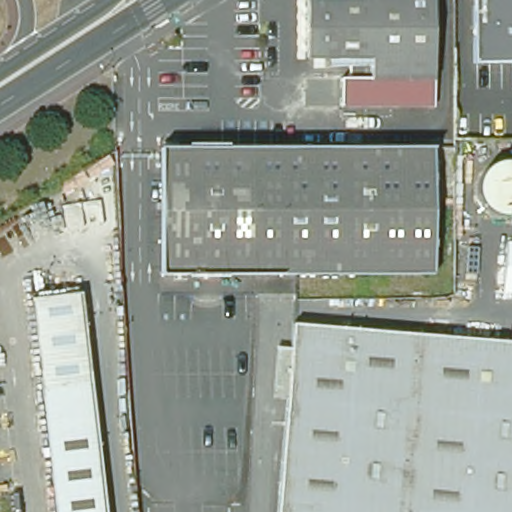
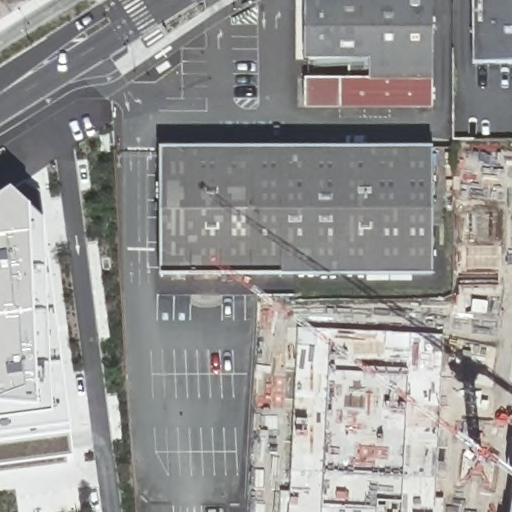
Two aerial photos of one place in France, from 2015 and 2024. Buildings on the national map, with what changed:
unchanged [(363,66),(296,66),(296,6),(343,6),(349,0),(429,0),(427,86),(363,87),(363,66)]
unchanged [(475,0),(512,0),(512,74),(475,74),(475,0)]
unchanged [(428,110),(337,111),(337,87),(363,87),(427,86),(428,110)]
unchanged [(261,197),(261,230),(260,276),(158,276),(159,151),(262,151),(261,197)]
unchanged [(430,152),(430,277),(260,276),(261,230),(261,197),(262,151),(430,152)]
new [(0,474),(0,198),(10,192),(30,210),(44,222),(70,427),(71,435),(75,455),(67,457),(68,465),(0,474)]
demolished [(26,313),(76,307),(86,396),(36,402),(26,313)]
demolished [(512,512),(276,512),(293,327),(415,336),(512,344),(512,512)]
new [(280,491),(290,492),(298,328),(443,335),(435,498),(445,500),(444,512),(279,512),(280,491)]
new [(512,500),(512,512),(510,512),(512,500)]

